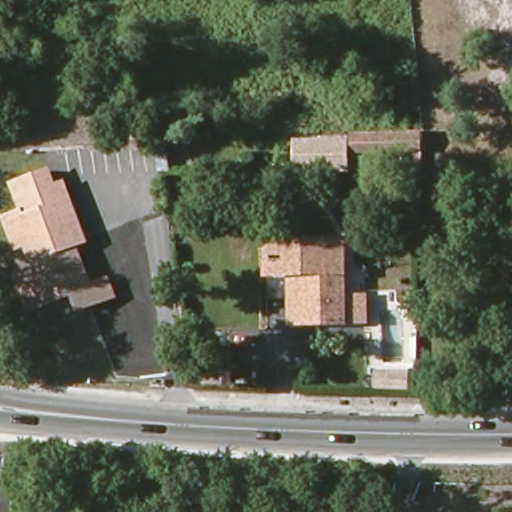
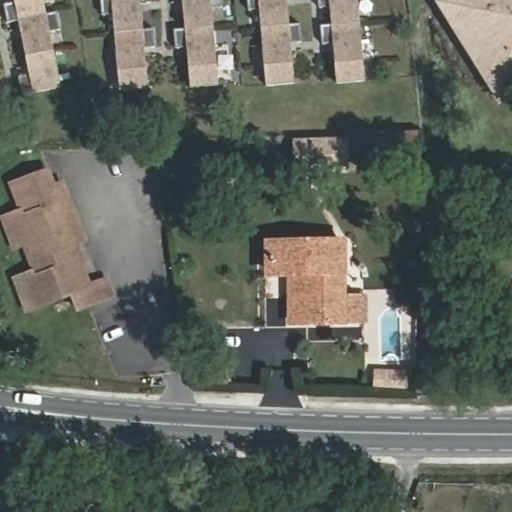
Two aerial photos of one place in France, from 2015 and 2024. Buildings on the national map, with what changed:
new [(19,20),(7,22),(4,4),(15,2),(14,0),(44,0),(47,14),(19,20)]
new [(115,33),(114,14),(103,15),(101,0),(141,0),(143,30),(115,33)]
new [(212,8),(214,26),(186,29),(183,0),(221,0),(222,6),(212,8)]
new [(248,0),(288,0),(290,25),(260,27),(258,10),(249,11),(248,0)]
new [(319,0),(358,0),(361,24),(333,26),(330,7),(320,8),(319,0)]
new [(512,0),(512,95),(502,101),(440,1),(442,0),(512,0)]
new [(56,13),(60,30),(51,31),(62,86),(32,91),(24,93),(20,76),(29,74),(19,20),(47,14),(56,13)]
new [(298,24),(300,42),(292,43),(295,83),(267,85),(260,27),(290,25),(298,24)]
new [(322,44),(321,26),(333,26),(361,24),(366,81),(336,82),(334,44),(322,44)]
new [(176,47),(175,30),(186,29),(214,26),(219,84),(191,86),(187,46),(176,47)]
new [(149,88),(120,90),(115,33),(143,30),(152,28),(154,46),(145,47),(149,88)]
unchanged [(420,131),(421,152),(327,158),(328,172),(293,176),(293,139),(420,131)]
unchanged [(14,285),(23,282),(34,278),(25,252),(22,246),(13,250),(4,223),(14,220),(23,217),(12,185),(48,173),(54,188),(62,185),(69,202),(77,227),(91,242),(75,246),(71,248),(71,249),(77,265),(85,289),(103,284),(109,301),(85,309),(74,313),(68,297),(32,309),(23,312),(14,285)]
unchanged [(369,327),(347,327),(292,328),(292,275),(272,275),(272,248),(346,247),(347,301),(368,300),(369,327)]
unchanged [(227,389),(202,388),(205,353),(231,354),(227,389)]

